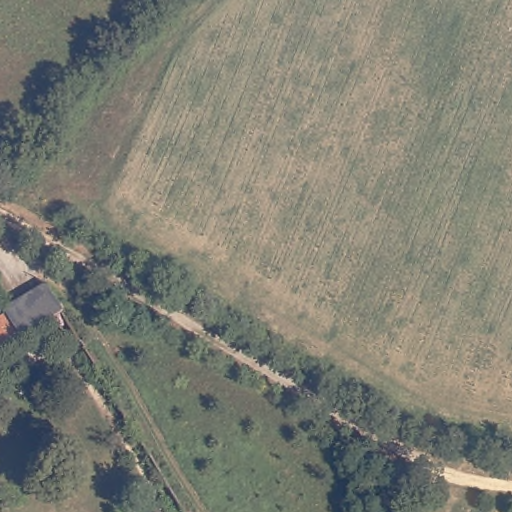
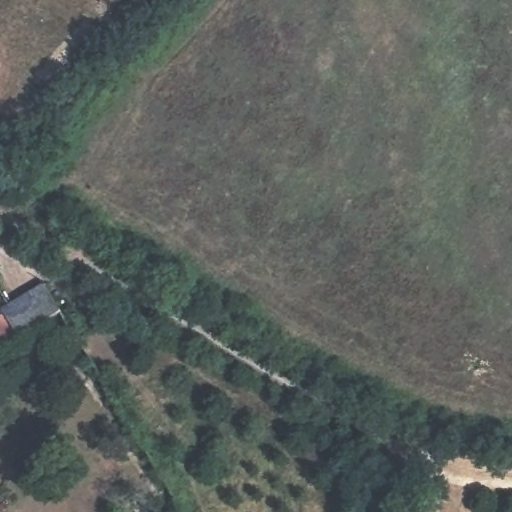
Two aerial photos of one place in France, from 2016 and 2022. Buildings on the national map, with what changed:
unchanged [(0,347),(0,312),(5,309),(45,285),(60,310),(0,347)]

